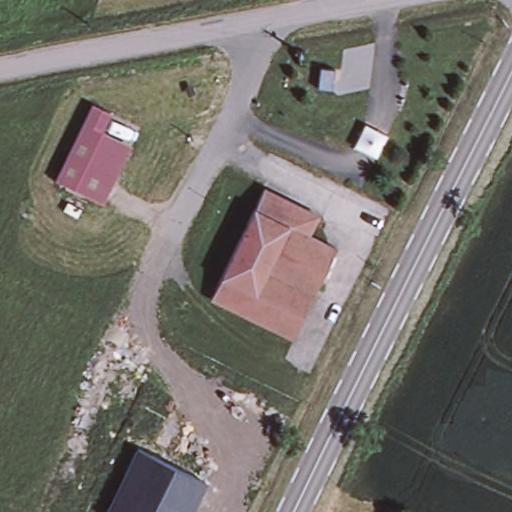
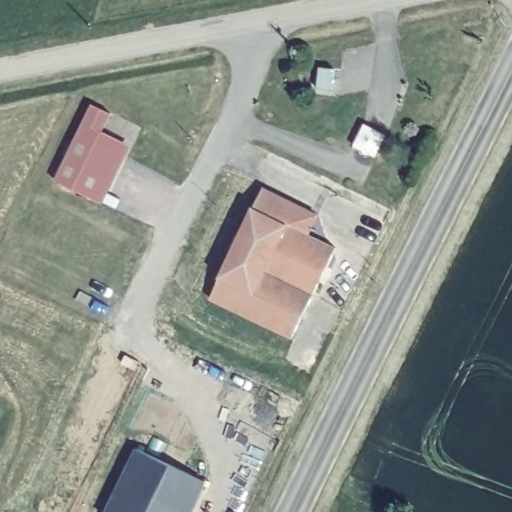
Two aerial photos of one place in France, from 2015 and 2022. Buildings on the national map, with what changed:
unchanged [(111,111),(103,129),(121,137),(93,194),(55,175),(93,101),(111,111)]
unchanged [(389,139),(377,161),(354,150),(367,128),(389,139)]
unchanged [(316,221),(305,239),(333,252),(302,316),(289,343),(208,304),(220,278),(261,195),(316,221)]
unchanged [(109,512),(139,446),(206,482),(191,512),(109,512)]

